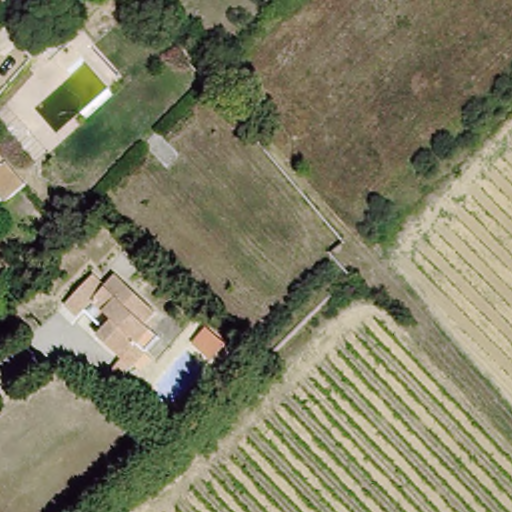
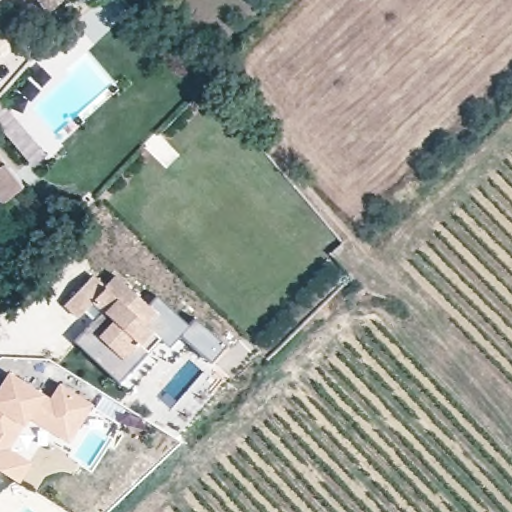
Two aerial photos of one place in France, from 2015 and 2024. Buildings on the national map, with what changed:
unchanged [(51,15),(40,0),(67,0),(68,0),(51,15)]
unchanged [(5,198),(0,194),(0,153),(25,182),(5,198)]
unchanged [(134,364),(126,355),(103,332),(110,324),(90,304),(83,310),(68,295),(97,269),(112,283),(122,273),(161,314),(151,323),(155,328),(162,338),(134,364)]
unchanged [(209,325),(231,347),(214,361),(193,339),(209,325)]
new [(41,393),(42,391),(50,397),(59,382),(94,405),(68,443),(28,417),(23,426),(9,447),(31,461),(18,483),(0,472),(0,383),(8,371),(41,393)]

